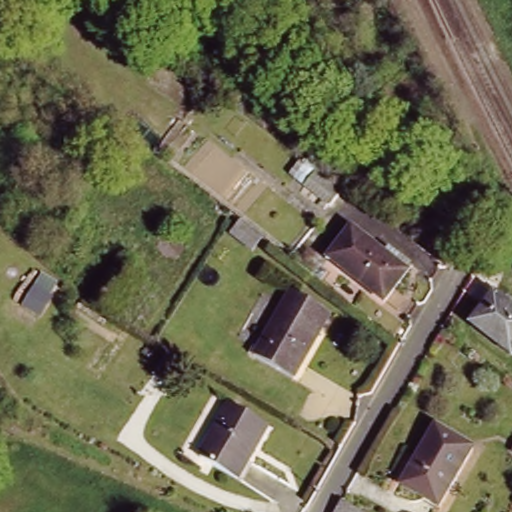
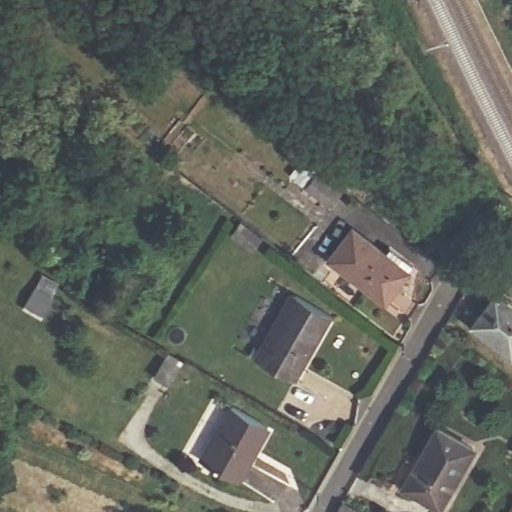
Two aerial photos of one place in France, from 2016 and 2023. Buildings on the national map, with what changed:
unchanged [(336,192),(328,203),(304,186),(313,174),(336,192)]
unchanged [(357,219),(411,262),(388,290),(334,247),(357,219)]
unchanged [(41,313),(33,328),(11,315),(0,309),(9,295),(21,300),(44,268),(62,280),(41,313)]
unchanged [(313,334),(299,357),(304,359),(295,374),(254,351),(291,286),(332,309),(317,336),(313,334)]
unchanged [(512,348),(512,349),(474,320),(498,291),(512,302),(512,348)]
unchanged [(239,479),(204,459),(236,404),(271,425),(239,479)]
unchanged [(446,423),(479,443),(444,500),(411,480),(446,423)]
unchanged [(393,445),(384,460),(376,455),(384,440),(393,445)]
unchanged [(372,512),(340,512),(349,499),(372,512)]

